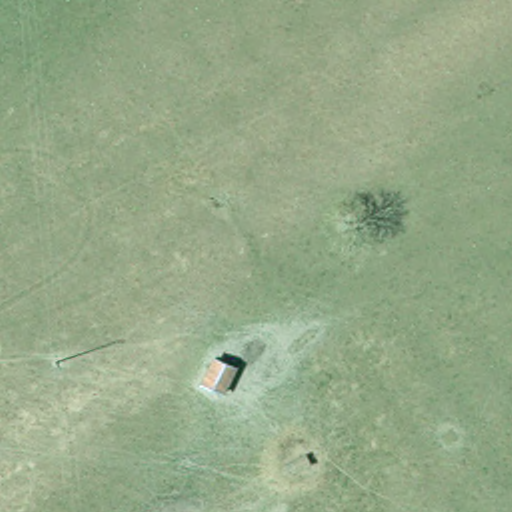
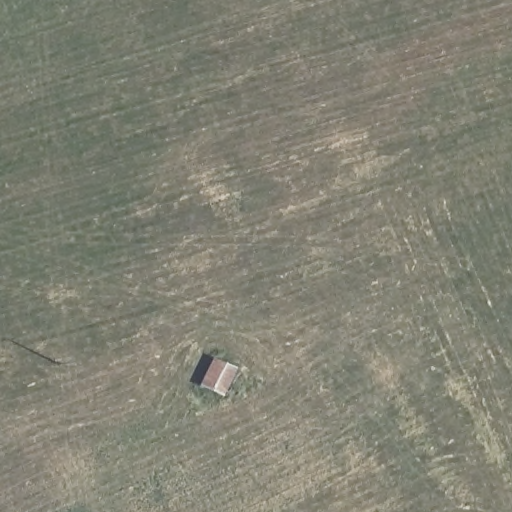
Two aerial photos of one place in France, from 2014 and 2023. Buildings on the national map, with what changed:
unchanged [(199,390),(211,356),(243,366),(229,399),(199,390)]

